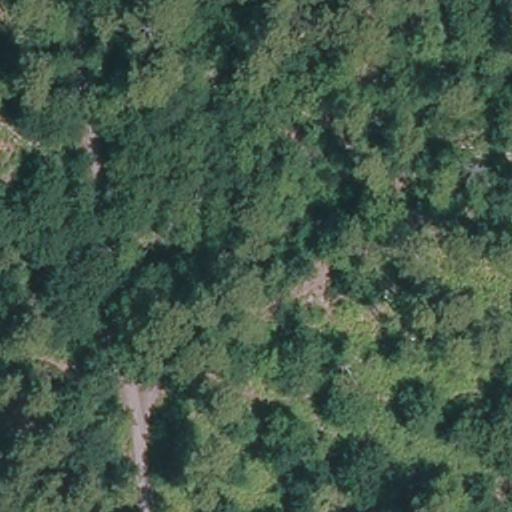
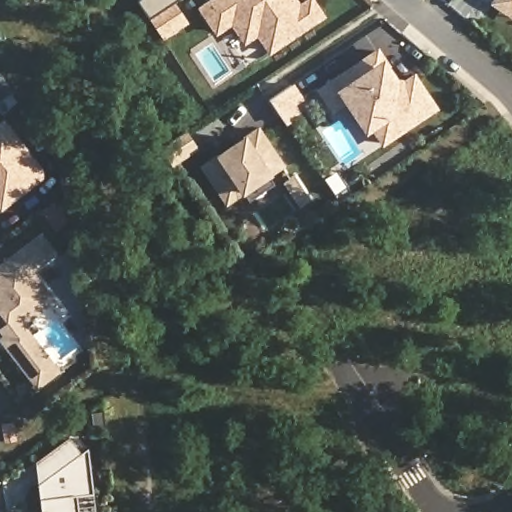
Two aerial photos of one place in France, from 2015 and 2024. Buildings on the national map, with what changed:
new [(174,0),(145,20),(133,3),(137,0),(174,0)]
new [(226,21),(211,32),(196,9),(209,0),(288,0),(293,8),(305,0),(316,16),(264,51),(252,59),(240,41),(226,21)]
new [(492,3),(494,0),(500,0),(512,8),(512,17),(492,3)]
new [(500,0),(512,0),(512,8),(500,0)]
new [(388,63),(383,66),(391,77),(405,81),(415,75),(436,107),(384,141),(373,125),(366,129),(347,100),(333,108),(320,88),(333,80),(378,49),(388,63)]
new [(2,98),(0,95),(0,80),(2,77),(12,91),(2,98)]
new [(269,98),(281,90),(292,83),(301,97),(290,104),(293,102),(299,111),(285,121),(269,98)]
new [(0,125),(3,123),(40,170),(41,177),(10,201),(2,207),(0,205),(0,125)]
new [(250,201),(243,191),(228,201),(204,166),(245,138),(252,133),(258,129),(282,165),(269,174),(276,183),(250,201)]
new [(172,163),(161,148),(185,132),(196,147),(172,163)]
new [(53,225),(42,211),(54,202),(65,216),(68,220),(56,229),(53,225)]
new [(55,253),(32,271),(54,300),(22,324),(59,371),(37,387),(1,339),(0,338),(0,266),(41,234),(55,253)]
new [(16,440),(5,442),(2,423),(12,421),(16,440)]
new [(78,512),(42,512),(39,485),(65,465),(56,454),(72,442),(81,453),(87,449),(94,494),(77,496),(78,512)]

